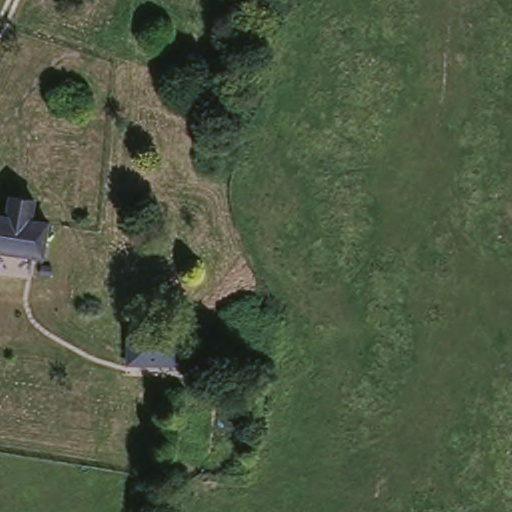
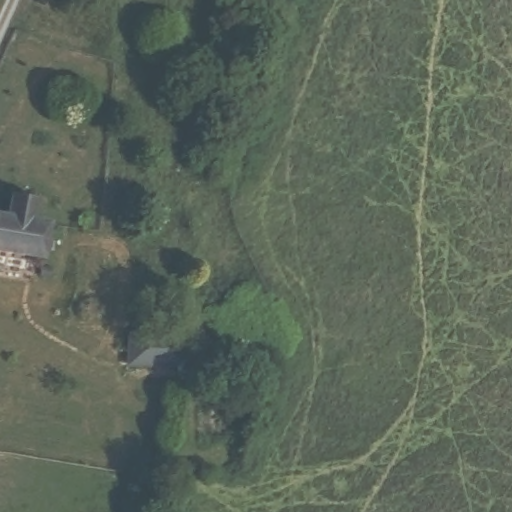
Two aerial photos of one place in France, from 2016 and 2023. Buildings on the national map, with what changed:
unchanged [(8,217),(12,192),(34,197),(30,220),(48,223),(43,255),(0,249),(0,216),(8,217)]
unchanged [(132,361),(142,361),(143,347),(187,352),(185,367),(184,373),(182,385),(130,378),(132,361)]

